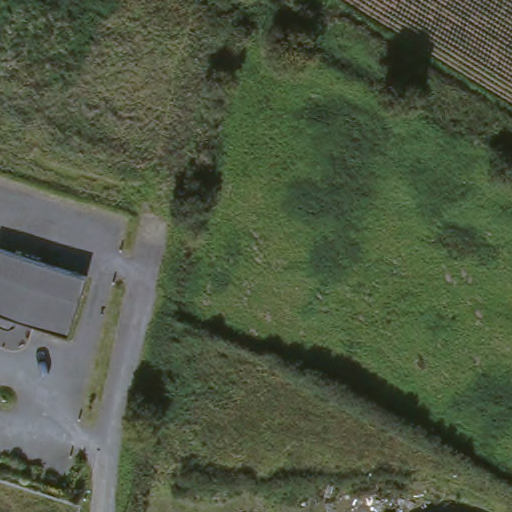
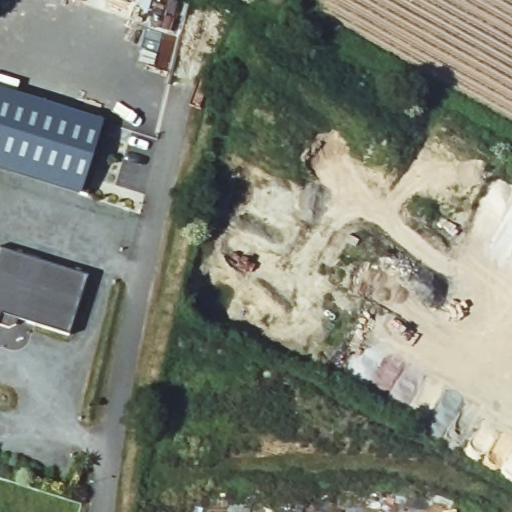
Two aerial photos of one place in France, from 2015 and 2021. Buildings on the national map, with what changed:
new [(0,90),(101,122),(109,123),(88,194),(79,193),(0,169),(0,90)]
unchanged [(1,324),(0,326),(0,249),(91,274),(73,334),(21,319),(19,324),(13,328),(1,324)]

